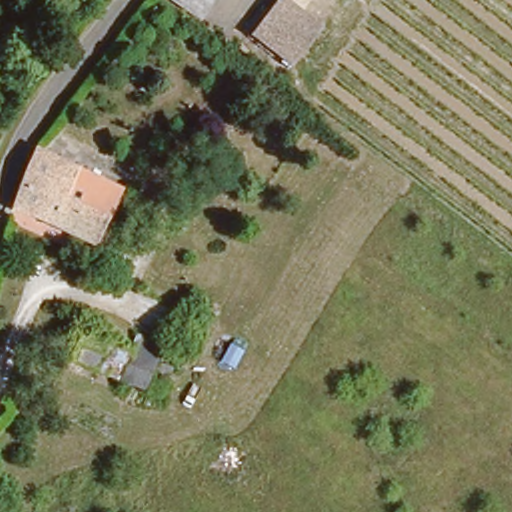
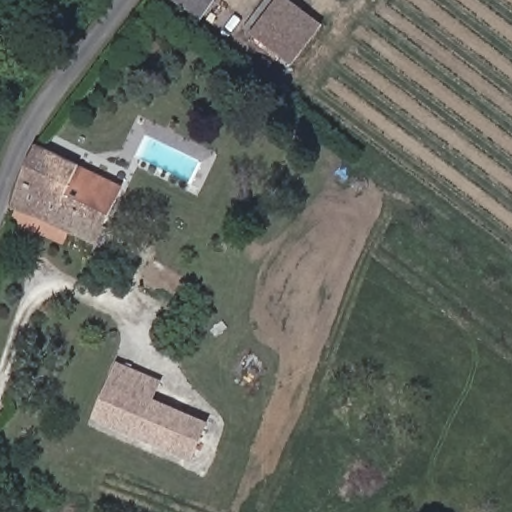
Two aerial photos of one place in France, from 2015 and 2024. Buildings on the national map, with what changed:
unchanged [(213,0),(197,19),(173,0),(213,0)]
unchanged [(286,63),(248,35),(275,0),(285,0),(315,23),(286,63)]
unchanged [(34,148),(118,189),(93,244),(10,206),(34,148)]
demolished [(85,329),(127,348),(158,362),(143,393),(138,391),(71,360),(78,344),(85,329)]
new [(210,424),(193,463),(92,421),(116,363),(162,381),(154,400),(210,424)]

